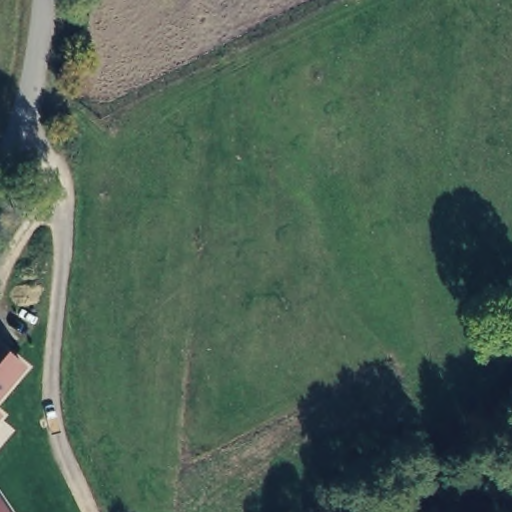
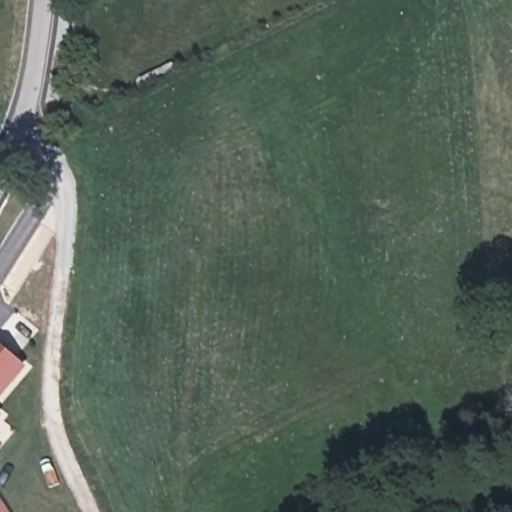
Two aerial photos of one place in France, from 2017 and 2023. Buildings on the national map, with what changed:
unchanged [(0,399),(0,342),(28,365),(0,399)]
unchanged [(0,416),(0,412),(2,414),(0,416)]
unchanged [(0,512),(0,501),(8,512),(0,512)]

